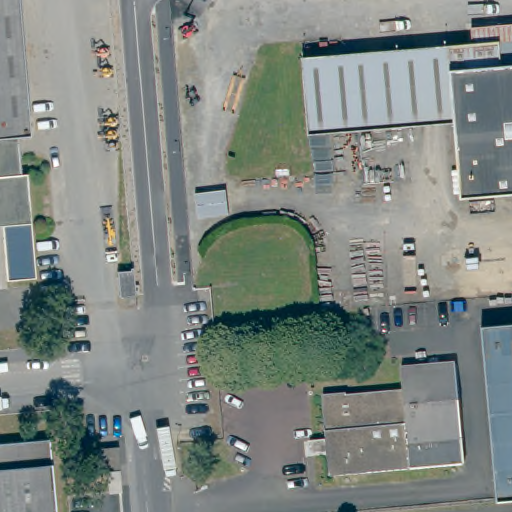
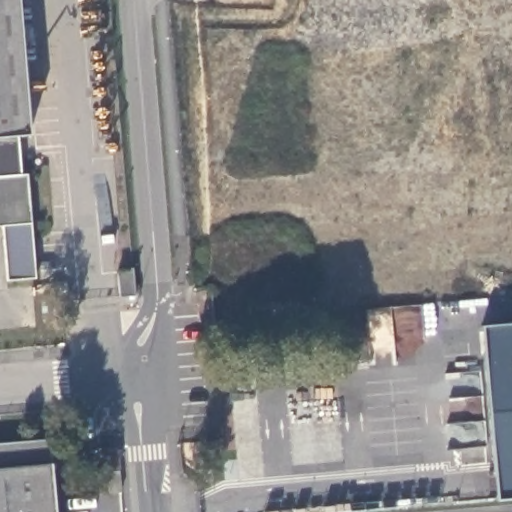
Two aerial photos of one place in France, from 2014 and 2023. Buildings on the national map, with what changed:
unchanged [(29,139),(17,140),(21,177),(26,177),(30,226),(0,229),(0,0),(17,0),(29,139)]
demolished [(467,24),(512,20),(512,191),(455,195),(449,118),(443,43),(468,41),(467,24)]
demolished [(396,46),(400,123),(350,125),(348,50),(396,46)]
unchanged [(117,274),(132,272),(135,297),(119,298),(117,274)]
unchanged [(497,498),(482,325),(512,322),(512,497),(506,497),(497,498)]
demolished [(464,465),(331,476),(328,453),(310,455),(309,443),(326,441),(323,397),(346,395),(347,397),(402,392),(401,370),(455,365),(464,465)]
unchanged [(48,441),(54,512),(0,512),(0,446),(48,441)]
unchanged [(117,449),(119,468),(100,470),(98,451),(117,449)]

